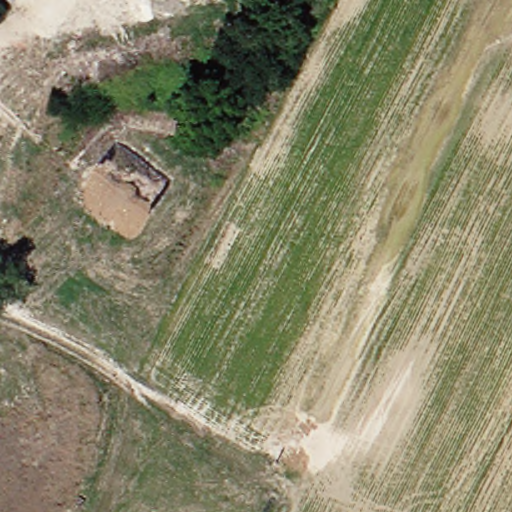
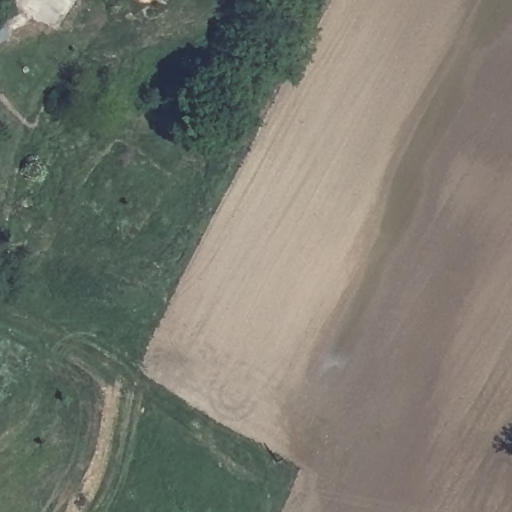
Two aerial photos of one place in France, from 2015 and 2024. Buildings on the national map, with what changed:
unchanged [(0,4),(0,0),(82,0),(59,40),(0,4)]

